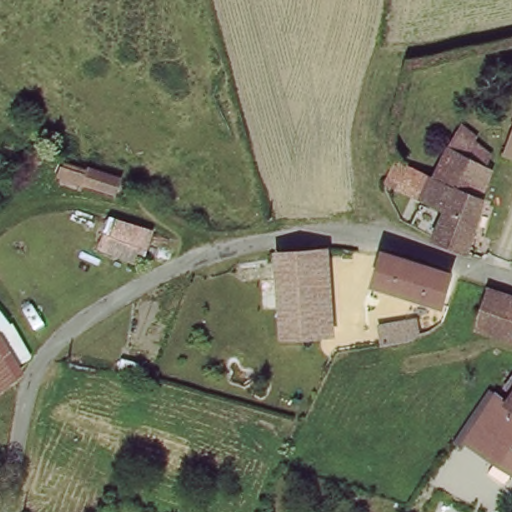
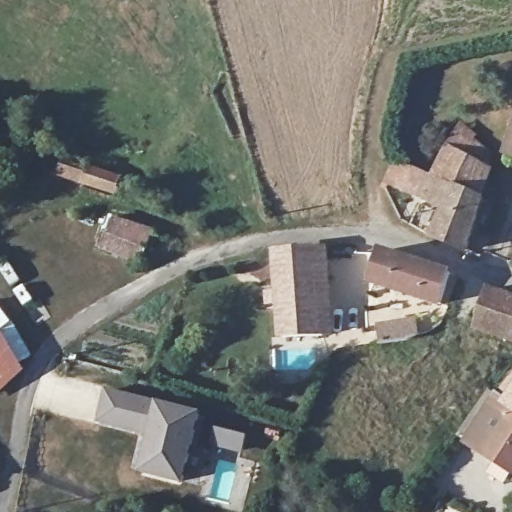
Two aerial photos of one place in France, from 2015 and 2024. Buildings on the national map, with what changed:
unchanged [(512,135),(512,145),(509,144),(512,135)]
unchanged [(439,237),(451,199),(404,171),(407,166),(416,145),(463,171),(467,159),(471,148),(502,158),(470,253),(439,237)]
unchanged [(88,168),(119,179),(117,193),(83,184),(88,168)]
unchanged [(144,266),(100,255),(108,222),(153,233),(144,266)]
unchanged [(370,276),(383,246),(387,246),(451,276),(439,304),(370,276)]
unchanged [(314,321),(313,346),(269,345),(279,276),(303,275),(304,247),(335,247),(334,273),(326,272),(325,322),(314,321)]
unchanged [(484,329),(501,295),(512,300),(512,341),(484,329)]
unchanged [(358,349),(356,327),(422,321),(424,338),(358,349)]
unchanged [(0,336),(22,366),(0,380),(0,336)]
unchanged [(497,404),(512,380),(512,414),(497,404)]
new [(106,388),(158,402),(201,413),(183,485),(138,473),(148,435),(97,422),(106,388)]
unchanged [(459,445),(489,400),(497,404),(512,414),(512,459),(502,474),(459,445)]

